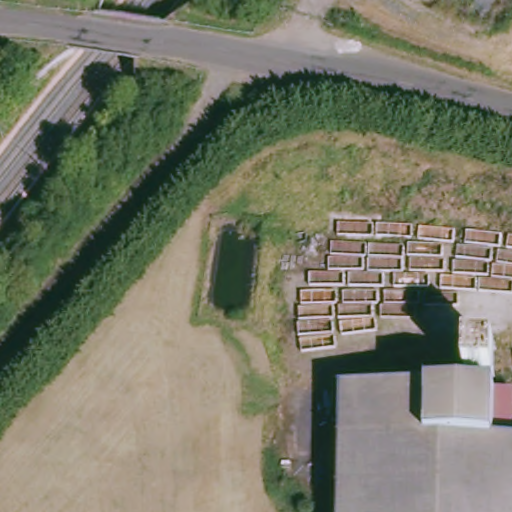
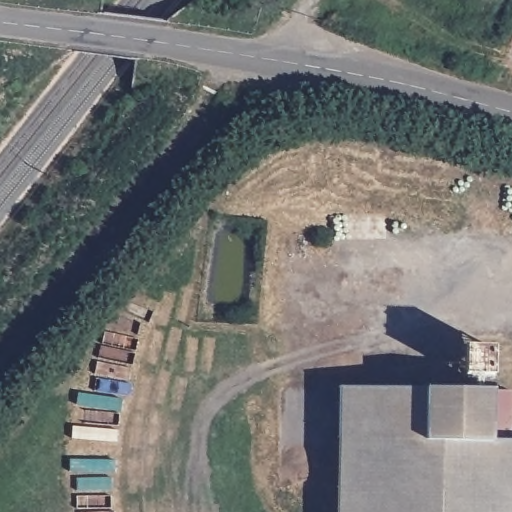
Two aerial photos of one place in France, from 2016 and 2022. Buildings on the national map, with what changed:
unchanged [(464,345),(494,346),(493,392),(463,391),(464,345)]
unchanged [(339,388),(463,391),(493,392),(512,392),(512,512),(336,512),(339,388)]

